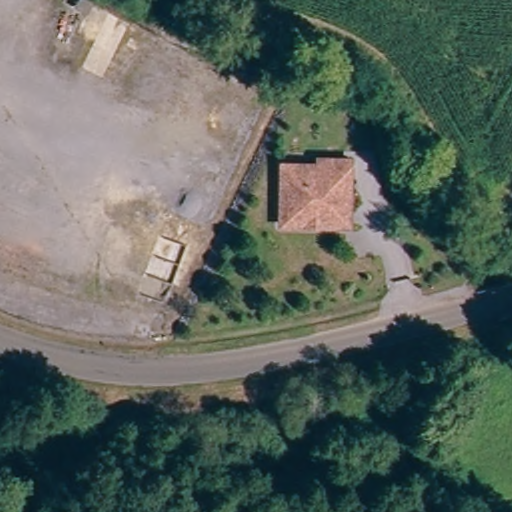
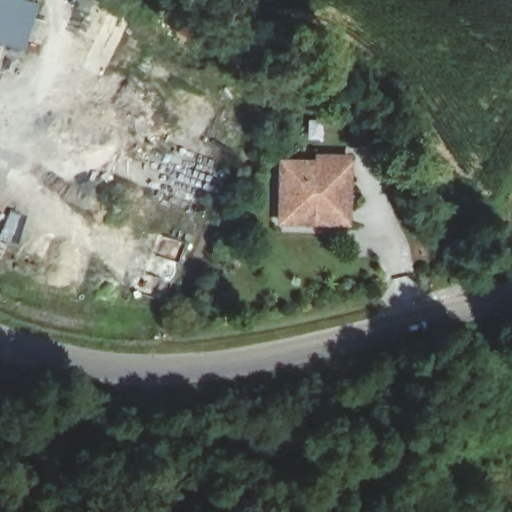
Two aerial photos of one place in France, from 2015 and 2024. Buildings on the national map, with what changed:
new [(0,0),(26,0),(40,5),(25,52),(0,45),(0,0)]
unchanged [(305,224),(281,222),(287,162),(323,166),(323,160),(356,164),(349,214),(348,229),(305,224)]

